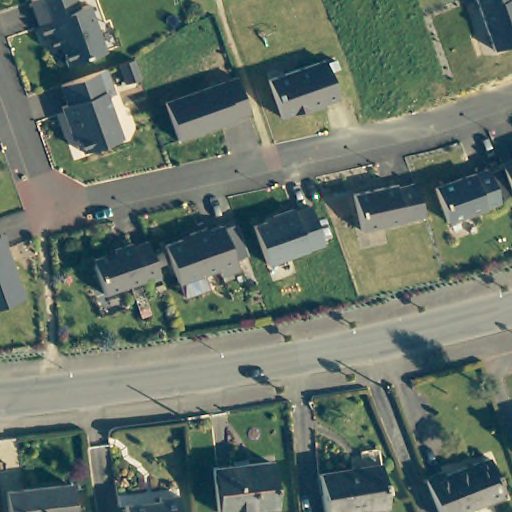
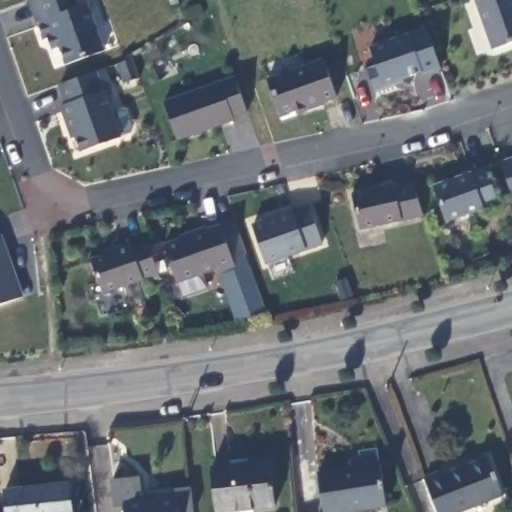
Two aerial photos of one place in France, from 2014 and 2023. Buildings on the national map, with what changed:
unchanged [(85,0),(101,47),(64,60),(57,41),(52,43),(49,32),(41,35),(29,0),(73,0),(75,3),(85,0)]
unchanged [(491,44),(476,0),(512,0),(512,37),(491,44)]
new [(367,70),(375,67),(370,48),(426,28),(440,68),(404,78),(405,82),(376,92),(367,70)]
unchanged [(116,59),(130,54),(138,74),(124,79),(116,59)]
unchanged [(321,54),(335,92),(321,97),(322,99),(305,105),(305,103),(278,112),(265,74),(321,54)]
unchanged [(104,92),(118,133),(80,147),(72,126),(68,128),(59,102),(65,100),(58,80),(102,64),(110,89),(104,92)]
unchanged [(245,108),(231,112),(231,115),(175,135),(162,97),(233,72),(245,108)]
unchanged [(511,191),(500,158),(499,158),(512,153),(512,191),(511,191)]
unchanged [(485,163),(497,196),(444,215),(432,181),(485,163)]
unchanged [(413,184),(422,211),(358,225),(350,188),(392,179),(392,181),(410,177),(413,184)]
unchanged [(307,201),(320,238),(263,258),(250,221),(271,213),(270,210),(290,203),(291,207),(307,201)]
unchanged [(182,292),(177,278),(175,278),(162,240),(188,231),(187,229),(204,223),(205,225),(219,220),(235,266),(219,271),(216,264),(200,269),(206,283),(182,292)]
unchanged [(0,300),(0,234),(20,293),(0,300)]
unchanged [(145,236),(147,244),(157,270),(101,289),(90,254),(112,246),(111,244),(129,238),(130,242),(145,236)]
unchanged [(502,499),(466,512),(438,512),(425,481),(441,475),(443,481),(490,464),(502,499)]
unchanged [(266,466),(269,512),(213,512),(210,470),(266,466)]
unchanged [(325,512),(320,477),(378,468),(385,510),(372,512),(325,512)]
unchanged [(67,485),(69,512),(4,512),(2,488),(67,485)]
unchanged [(176,512),(120,512),(119,505),(175,502),(176,512)]

